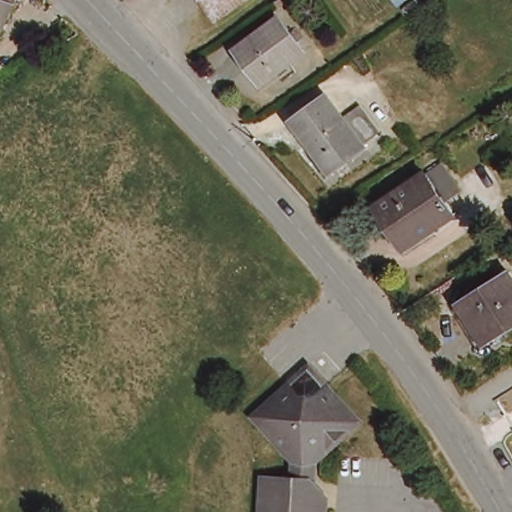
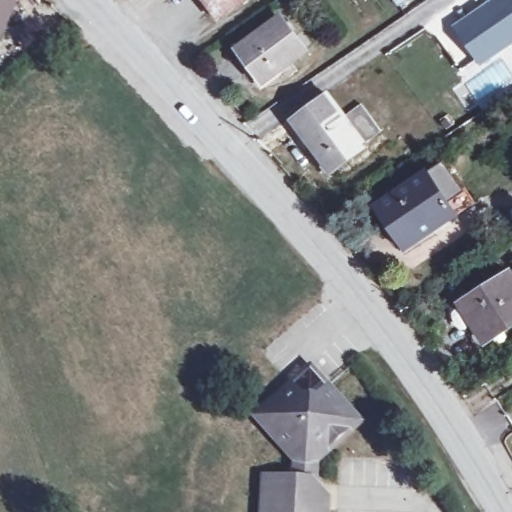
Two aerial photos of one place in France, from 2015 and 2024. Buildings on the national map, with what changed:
unchanged [(9,7),(11,8),(0,33),(0,0),(12,0),(9,7)]
unchanged [(221,17),(208,0),(246,0),(221,17)]
unchanged [(402,3),(388,14),(379,0),(399,0),(402,3)]
new [(488,0),(512,0),(512,44),(480,65),(452,25),(488,0)]
unchanged [(288,18),(309,50),(265,79),(243,47),(288,18)]
unchanged [(330,95),(344,115),(362,104),(381,130),(331,167),(296,120),(330,95)]
unchanged [(429,174),(456,216),(409,247),(379,205),(429,174)]
unchanged [(509,270),(512,274),(512,324),(485,341),(460,302),(509,270)]
unchanged [(306,457),(307,481),(318,481),(326,493),(328,512),(258,512),(259,476),(286,476),(286,453),(251,413),(288,382),(306,366),(323,384),(354,419),(314,456),(306,457)]

